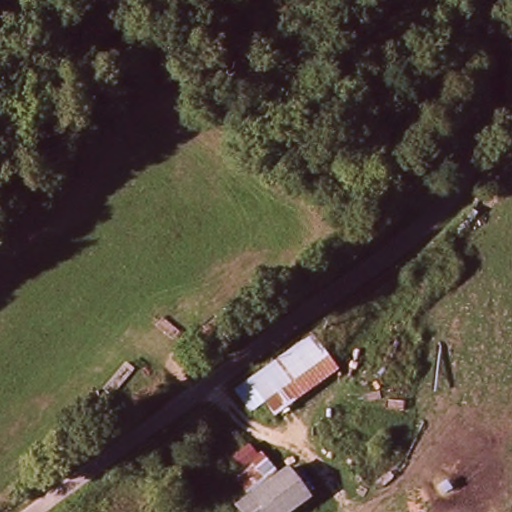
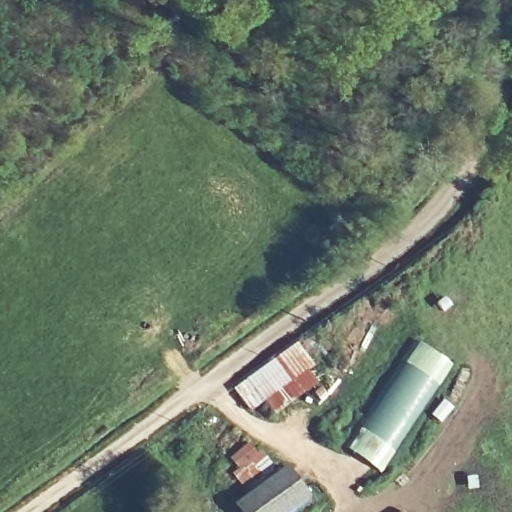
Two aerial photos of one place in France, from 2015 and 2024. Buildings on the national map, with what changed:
unchanged [(273,401),(257,409),(244,385),(324,334),(347,370),(283,414),(273,401)]
new [(452,363),(379,469),(344,445),(417,340),(452,363)]
unchanged [(313,495),(290,512),(242,512),(235,502),(250,488),(233,472),(240,465),(229,454),(250,440),(313,495)]

